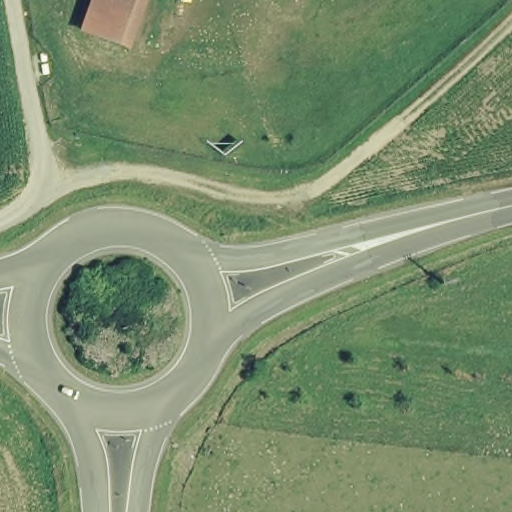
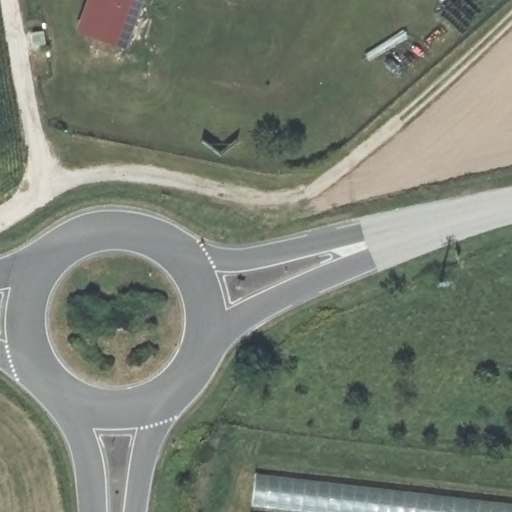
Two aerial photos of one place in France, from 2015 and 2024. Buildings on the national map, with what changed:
unchanged [(126,52),(78,33),(91,0),(146,0),(126,52)]
new [(512,504),(512,512),(250,512),(254,474),(512,504)]

